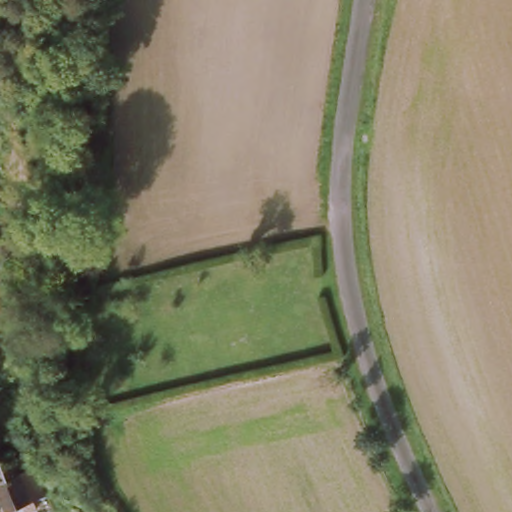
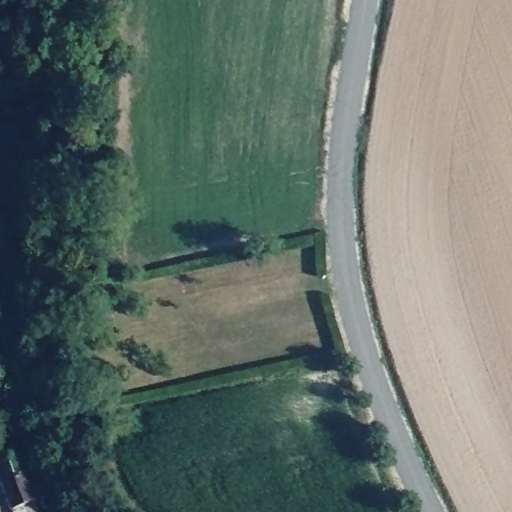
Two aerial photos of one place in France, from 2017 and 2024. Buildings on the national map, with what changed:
unchanged [(22,512),(17,503),(5,509),(0,498),(0,453),(17,446),(27,466),(39,493),(28,498),(32,508),(23,512),(22,512)]

